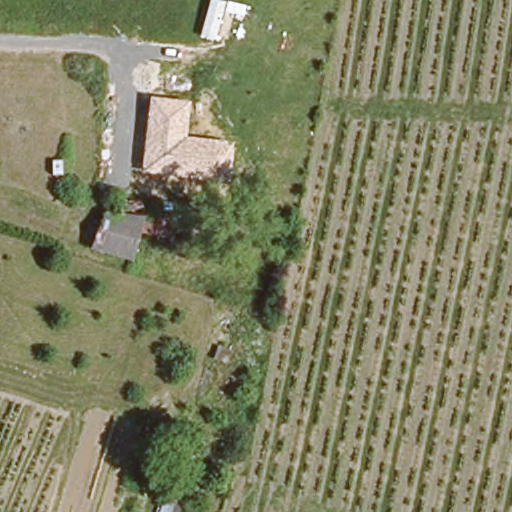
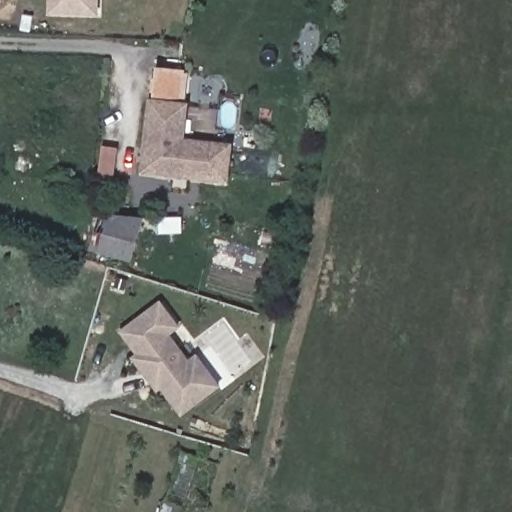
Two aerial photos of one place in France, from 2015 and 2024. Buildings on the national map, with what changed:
new [(99,15),(48,13),(49,0),(100,0),(99,15)]
unchanged [(229,183),(141,173),(148,98),(190,102),(185,138),(234,144),(229,183)]
unchanged [(92,250),(100,213),(104,202),(143,205),(143,221),(133,258),(92,250)]
new [(221,386),(182,415),(162,389),(158,392),(132,357),(136,353),(119,330),(160,299),(181,328),(172,335),(190,359),(198,354),(221,386)]

